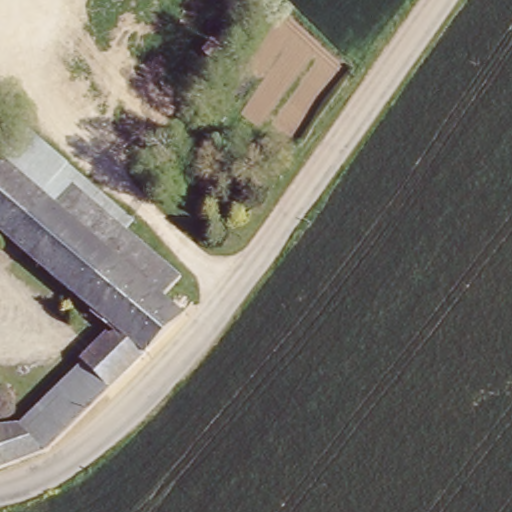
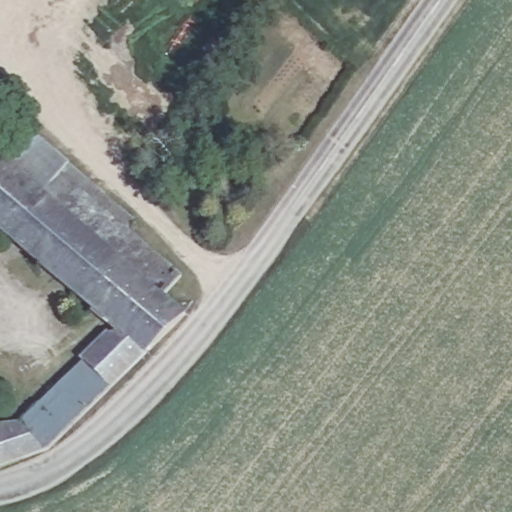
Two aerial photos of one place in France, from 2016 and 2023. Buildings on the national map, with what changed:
unchanged [(210,34),(223,44),(213,56),(201,47),(210,34)]
unchanged [(14,121),(66,165),(60,173),(42,194),(0,158),(0,138),(14,121)]
unchanged [(42,194),(163,297),(184,315),(113,392),(83,364),(80,361),(103,337),(119,332),(0,231),(0,158),(42,194)]
unchanged [(60,173),(181,276),(163,297),(42,194),(60,173)]
unchanged [(83,364),(113,392),(84,418),(56,392),(83,364)]
unchanged [(0,409),(0,390),(6,387),(13,403),(0,409)]
unchanged [(23,427),(56,392),(84,418),(46,453),(23,427)]
unchanged [(23,427),(46,453),(0,470),(0,427),(23,427)]

